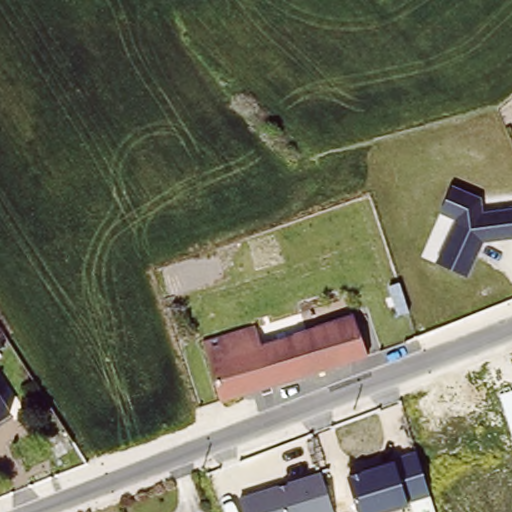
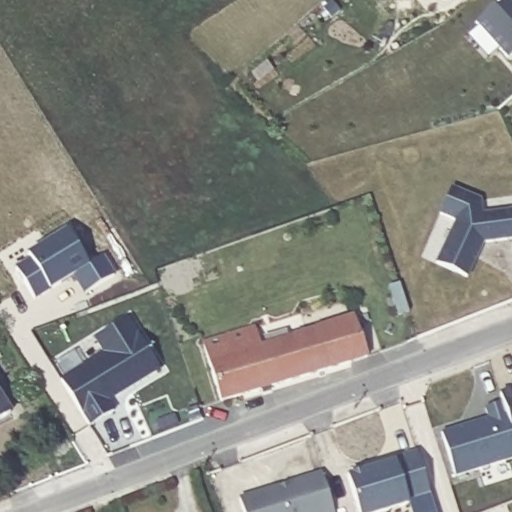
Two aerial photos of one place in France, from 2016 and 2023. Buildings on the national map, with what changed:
new [(441,0),(446,0),(443,2),(441,0)]
new [(512,0),(512,56),(512,55),(507,59),(475,23),(501,0),(512,0)]
unchanged [(481,199),(483,212),(512,209),(512,239),(484,242),(467,281),(433,265),(454,222),(438,213),(450,183),(481,199)]
new [(84,294),(70,276),(49,290),(34,300),(15,269),(30,260),(27,256),(66,231),(87,266),(104,257),(114,277),(84,294)]
new [(107,401),(114,411),(90,426),(61,379),(103,352),(93,338),(127,318),(137,334),(143,337),(159,371),(107,401)]
unchanged [(257,331),(265,353),(354,322),(370,363),(225,407),(204,350),(257,331)]
new [(503,392),(512,389),(512,421),(503,392)]
unchanged [(0,428),(0,398),(14,420),(0,428)]
new [(512,421),(512,460),(455,478),(442,432),(486,418),(484,410),(507,403),(512,421)]
unchanged [(417,457),(431,498),(394,512),(358,512),(347,478),(417,458),(417,457)]
unchanged [(334,512),(243,512),(239,498),(320,475),(334,512)]

